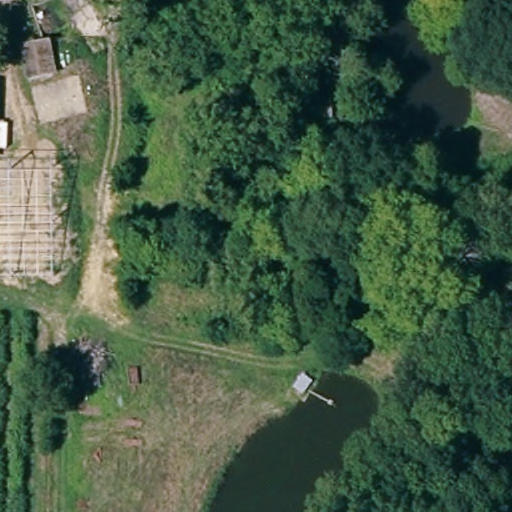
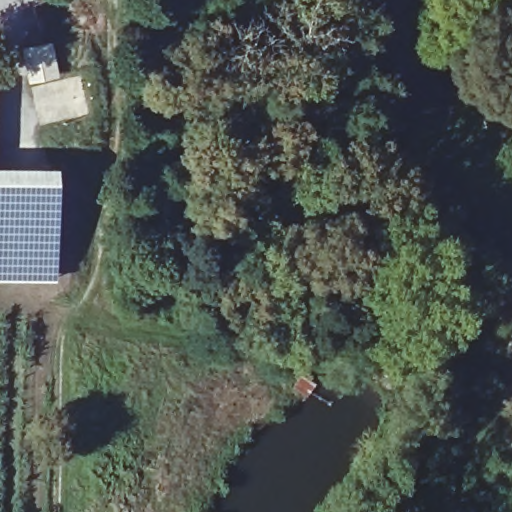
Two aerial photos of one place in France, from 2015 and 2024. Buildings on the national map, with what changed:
unchanged [(40,75),(37,49),(59,47),(63,46),(67,71),(54,72),(40,75)]
new [(0,279),(0,167),(55,167),(55,280),(0,279)]
demolished [(2,256),(1,179),(52,179),(50,275),(6,274),(2,256)]

